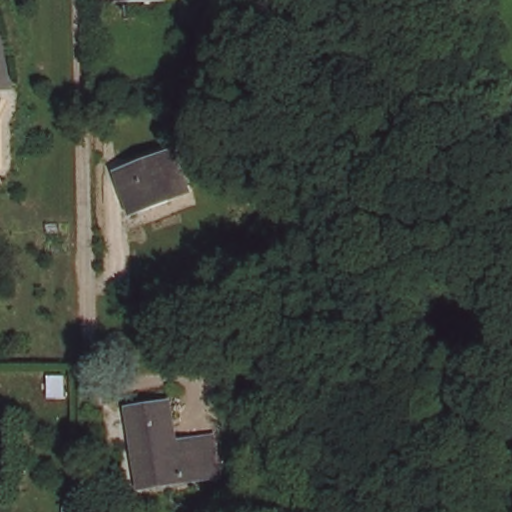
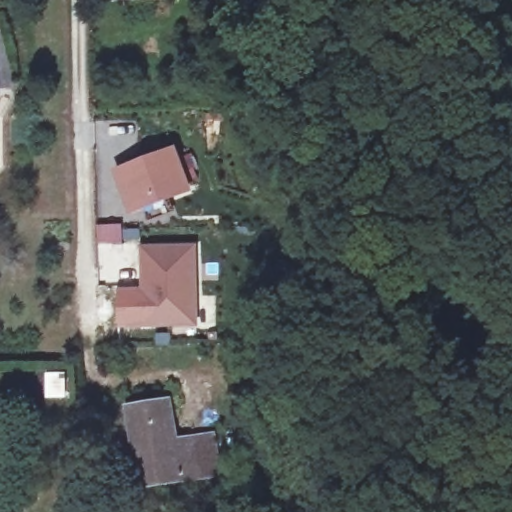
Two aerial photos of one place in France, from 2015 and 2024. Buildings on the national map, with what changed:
unchanged [(182,153),(194,185),(140,205),(129,174),(182,153)]
new [(144,327),(144,249),(199,246),(200,327),(144,327)]
unchanged [(177,440),(213,434),(215,447),(220,474),(140,487),(128,407),(170,401),(177,440)]

